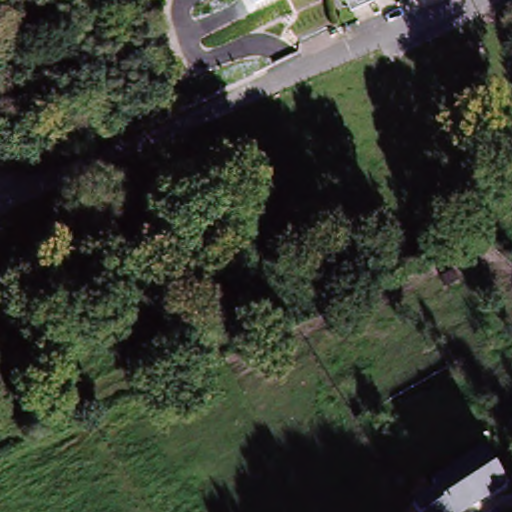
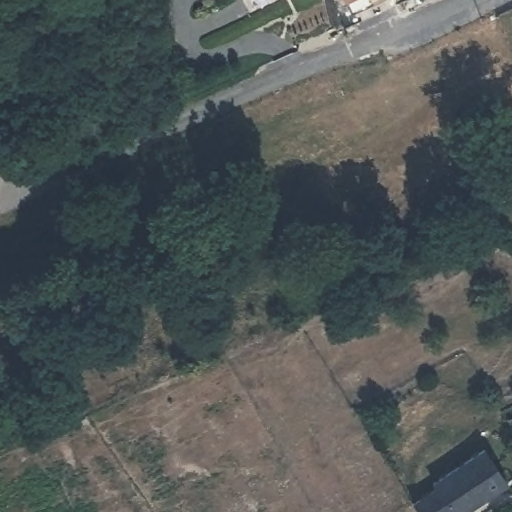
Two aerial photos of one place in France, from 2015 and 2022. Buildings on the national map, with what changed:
unchanged [(354,2),(353,0),(360,0),(354,2)]
unchanged [(508,486),(469,512),(456,512),(437,482),(486,450),(508,486)]

